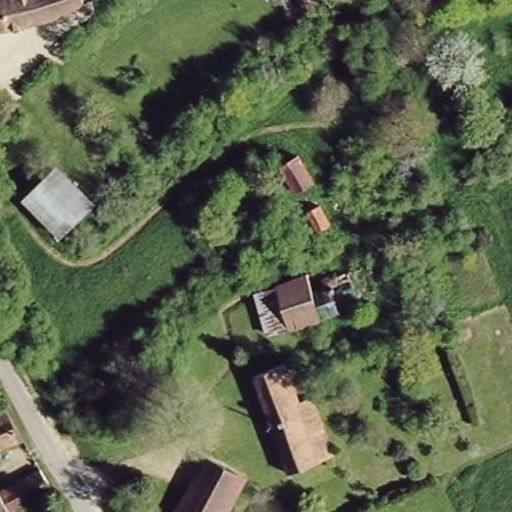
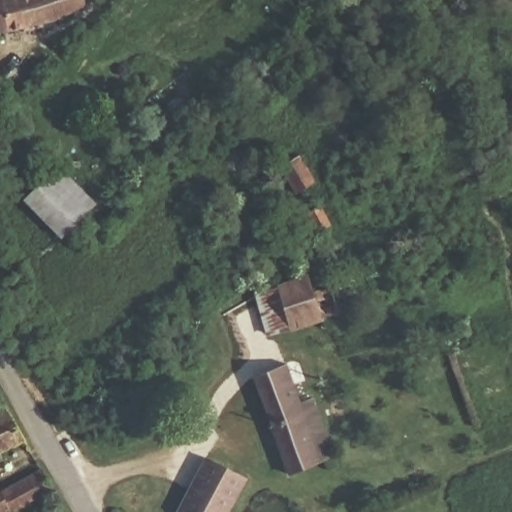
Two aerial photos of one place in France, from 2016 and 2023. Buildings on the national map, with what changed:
unchanged [(81,2),(82,6),(56,18),(0,32),(0,0),(86,0),(81,2)]
unchanged [(297,157),(312,183),(295,193),(280,167),(297,157)]
unchanged [(46,177),(81,212),(57,236),(21,199),(46,177)]
unchanged [(320,206),(330,226),(317,233),(307,213),(320,206)]
unchanged [(320,319),(311,292),(320,289),(320,281),(371,265),(375,274),(366,277),(374,302),(320,319)]
unchanged [(275,287),(306,274),(311,292),(320,319),(290,329),(268,336),(255,295),(275,287)]
unchanged [(280,365),(295,403),(307,399),(328,458),(283,474),(248,377),(280,365)]
unchanged [(25,442),(0,452),(5,463),(0,465),(0,413),(6,410),(25,442)]
unchanged [(246,474),(224,512),(175,512),(208,452),(246,474)]
unchanged [(20,512),(0,512),(0,493),(2,496),(43,471),(55,491),(20,512)]

